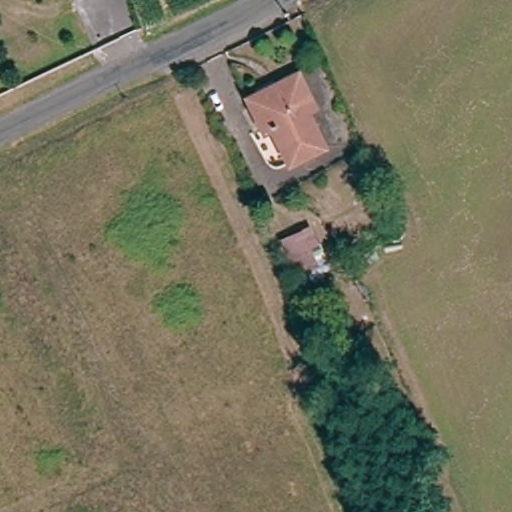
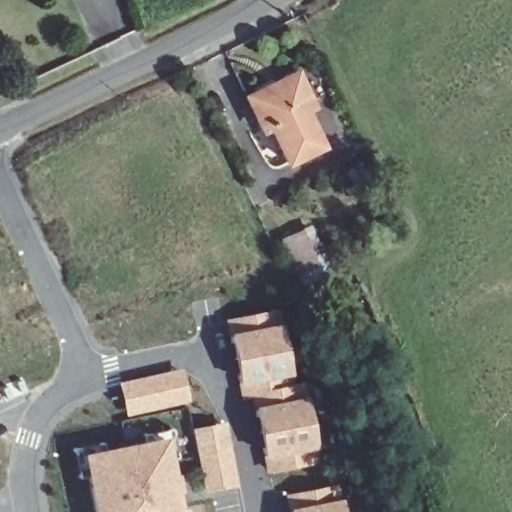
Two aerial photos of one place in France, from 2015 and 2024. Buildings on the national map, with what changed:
unchanged [(308,106),(302,110),(318,146),(286,161),(270,126),(261,130),(247,101),(244,95),(272,83),(293,74),(308,106)]
new [(334,276),(305,291),(280,241),(308,226),(334,276)]
new [(252,395),(243,396),(239,374),(232,343),(227,321),(274,311),(290,387),(300,385),(315,460),(268,470),(263,448),(257,416),(252,395)]
new [(181,366),(190,402),(125,416),(117,381),(181,366)]
new [(225,420),(236,487),(203,492),(190,427),(225,420)]
new [(177,458),(167,460),(164,440),(144,445),(142,435),(171,428),(177,458)]
new [(95,512),(84,456),(164,440),(179,512),(95,512)]
new [(101,443),(104,452),(84,456),(88,476),(78,478),(72,449),(101,443)]
new [(335,487),(340,512),(291,512),(288,496),(335,487)]
new [(188,510),(189,512),(178,512),(178,511),(188,510)]

